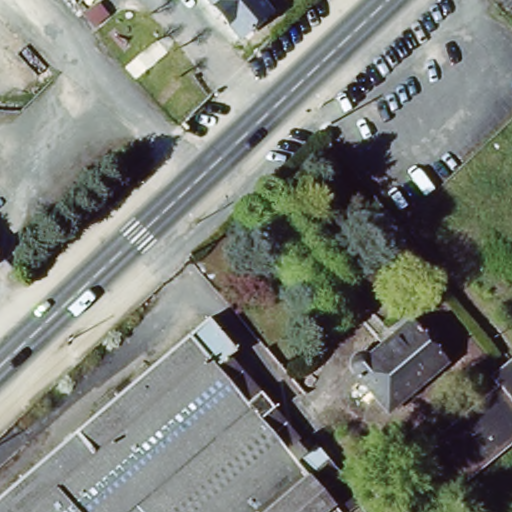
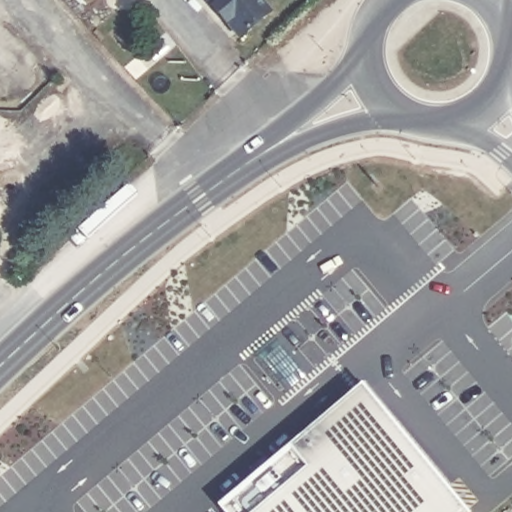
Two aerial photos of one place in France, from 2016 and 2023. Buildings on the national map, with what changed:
unchanged [(211,0),(259,0),(270,11),(242,35),(211,0)]
demolished [(510,0),(512,0),(512,3),(510,0)]
unchanged [(0,251),(0,248),(1,249),(0,251)]
demolished [(352,360),(353,358),(355,355),(358,352),(361,351),(368,351),(373,357),(416,319),(450,356),(390,409),(353,367),(352,360)]
demolished [(299,459),(311,474),(330,459),(367,504),(356,512),(82,512),(53,477),(228,330),(248,354),(240,361),(301,433),(302,435),(298,438),(308,451),(299,459)]
demolished [(500,384),(491,374),(512,359),(512,445),(458,489),(425,449),(500,384)]
new [(217,506),(290,445),(363,383),(473,511),(472,512),(222,512),(217,506)]
demolished [(82,512),(13,512),(53,477),(82,512)]

